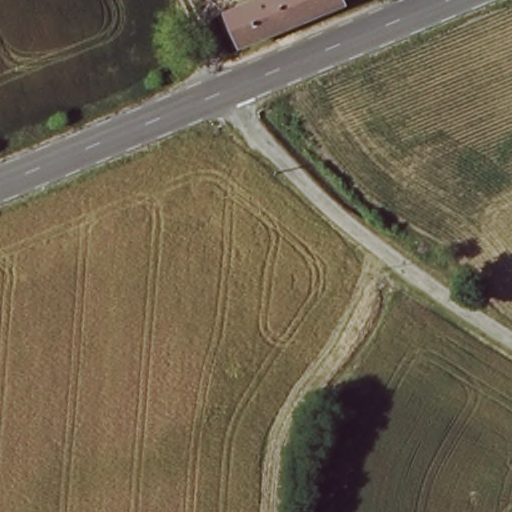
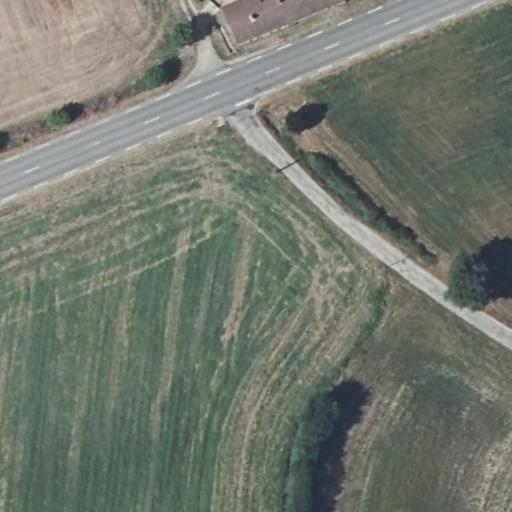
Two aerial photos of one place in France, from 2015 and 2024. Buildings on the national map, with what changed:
unchanged [(235,45),(217,10),(242,0),(340,0),(235,45)]

